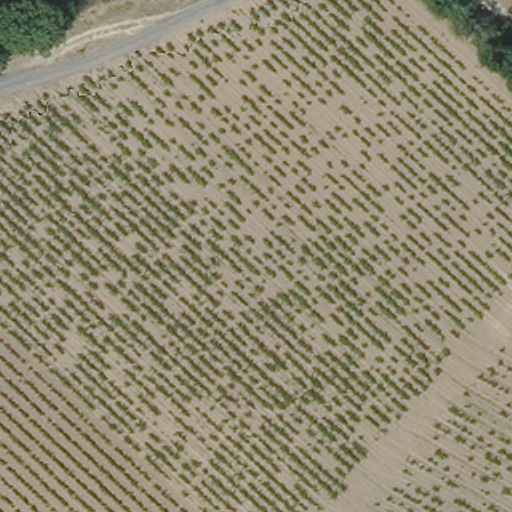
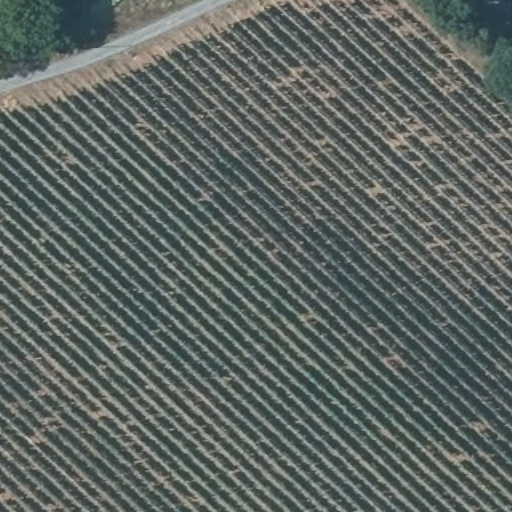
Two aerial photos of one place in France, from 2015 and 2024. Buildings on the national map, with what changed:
[]

